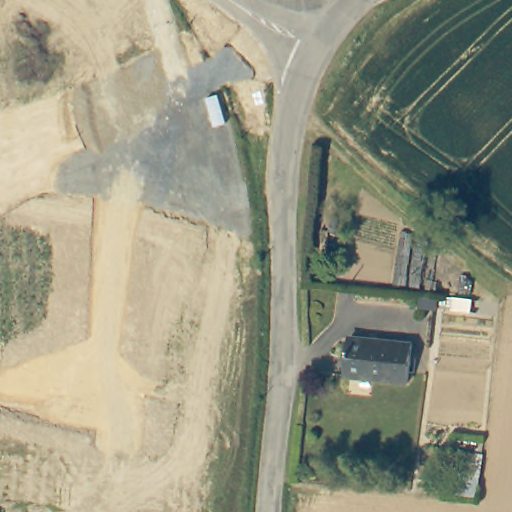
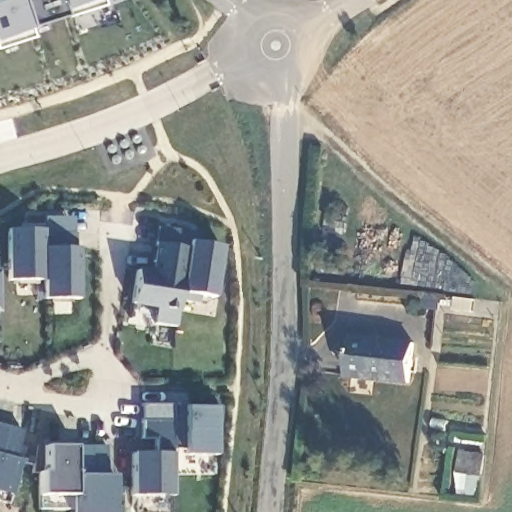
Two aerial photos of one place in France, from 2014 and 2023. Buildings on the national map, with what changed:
new [(0,0),(106,0),(106,1),(69,14),(67,11),(31,23),(35,34),(0,43),(0,0)]
new [(42,279),(7,279),(8,229),(43,229),(43,216),(72,217),(73,247),(78,247),(79,298),(42,298),(42,279)]
new [(196,295),(195,304),(177,302),(186,248),(155,243),(157,227),(194,231),(193,242),(220,246),(211,298),(196,295)]
new [(150,271),(155,243),(186,248),(173,327),(151,324),(155,310),(129,305),(135,268),(150,271)]
unchanged [(413,346),(411,383),(347,376),(350,338),(413,346)]
new [(139,402),(171,402),(171,405),(219,405),(215,445),(212,445),(212,454),(177,454),(177,448),(170,448),(170,420),(139,420),(139,402)]
new [(153,453),(154,438),(141,438),(141,420),(144,420),(170,420),(170,448),(170,496),(130,497),(130,452),(153,453)]
new [(13,460),(20,462),(7,503),(0,501),(0,426),(20,431),(13,460)]
new [(73,495),(40,495),(40,473),(45,473),(45,447),(71,447),(111,446),(111,476),(111,512),(73,512),(73,495)]
unchanged [(458,451),(486,454),(480,501),(453,497),(458,451)]

